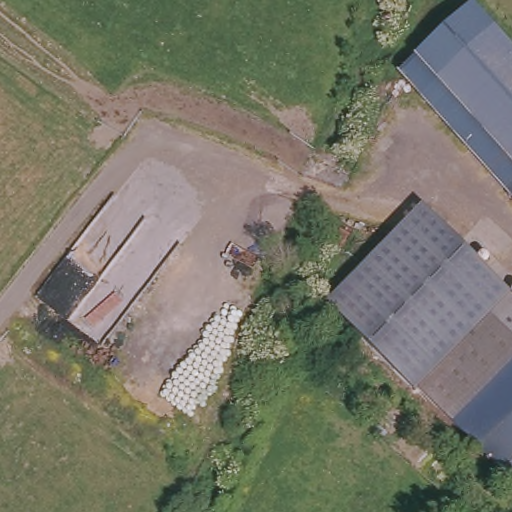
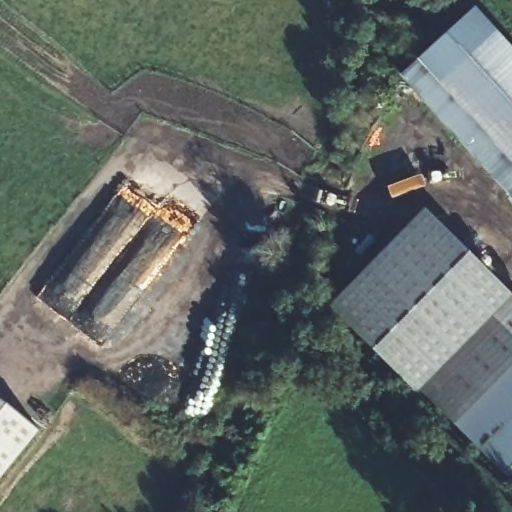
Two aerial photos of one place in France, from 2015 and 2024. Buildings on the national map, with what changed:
unchanged [(418,46),(469,0),(478,0),(496,20),(512,38),(512,151),(441,72),(418,46)]
unchanged [(399,62),(418,46),(441,72),(512,151),(512,172),(506,178),(399,62)]
unchanged [(317,301),(409,202),(498,285),(481,304),(409,381),(407,383),(317,301)]
unchanged [(498,285),(512,297),(512,333),(481,304),(498,285)]
unchanged [(512,369),(461,427),(409,381),(481,304),(512,333),(512,369)]
unchanged [(461,427),(512,369),(512,474),(460,428),(461,427)]
new [(39,431),(0,481),(0,401),(39,431)]

